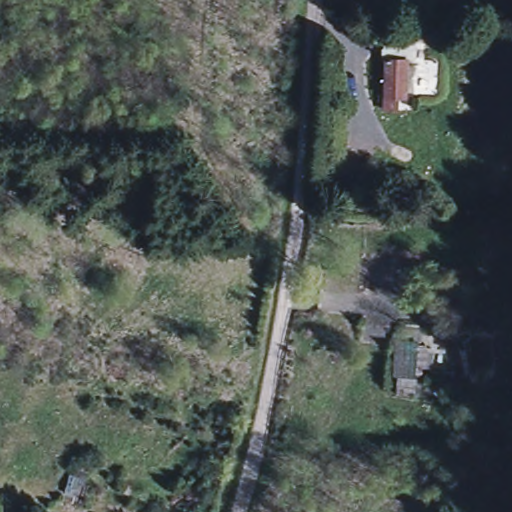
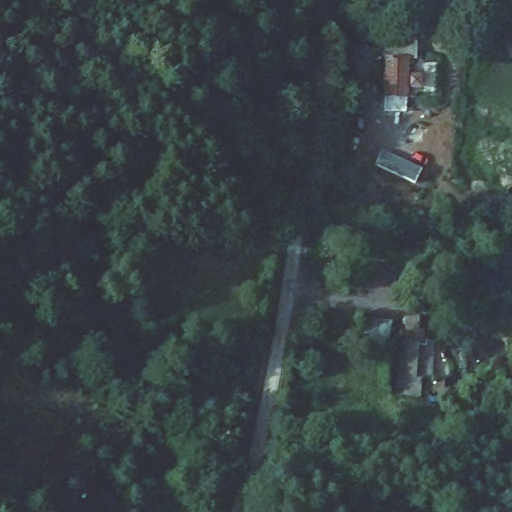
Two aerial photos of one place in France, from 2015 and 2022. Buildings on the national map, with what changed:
unchanged [(382,107),(383,96),(386,56),(408,57),(405,97),(397,97),(396,109),(382,107)]
unchanged [(432,346),(429,370),(423,370),(419,400),(394,397),(395,378),(391,378),(394,342),(432,346)]

